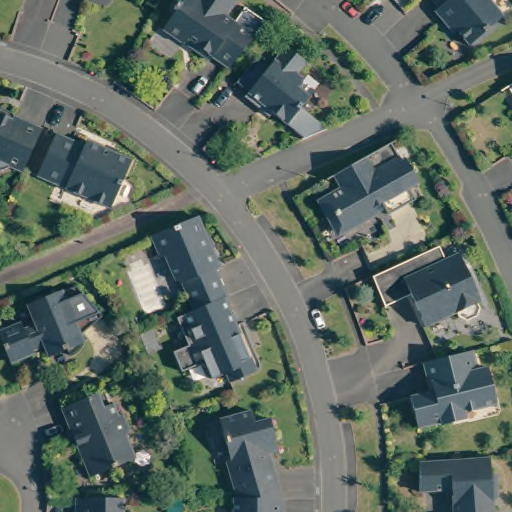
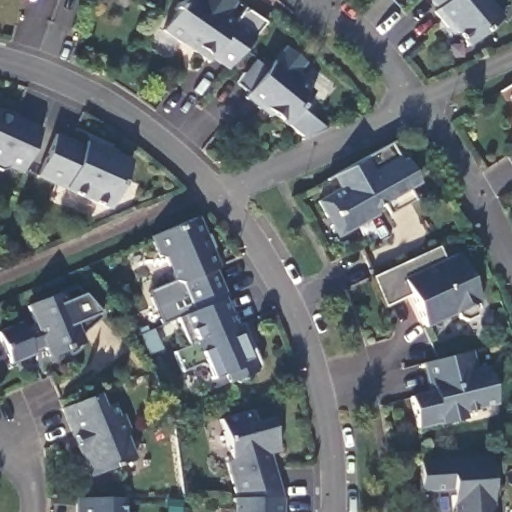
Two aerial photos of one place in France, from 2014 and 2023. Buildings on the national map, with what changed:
unchanged [(205,60),(193,52),(193,46),(186,42),(180,45),(161,31),(170,19),(174,12),(172,10),(176,4),(179,5),(183,0),(229,0),(234,3),(223,17),(232,24),(243,9),(264,24),(253,38),(247,45),(227,70),(210,59),(205,60)]
unchanged [(466,42),(449,22),(446,25),(432,9),(436,5),(431,0),(488,0),(500,14),(466,42)]
unchanged [(303,64),(294,75),(300,81),(298,84),(310,95),(298,110),(325,132),(299,142),(298,140),(300,140),(270,115),(267,119),(242,99),(245,95),(233,85),(252,61),(264,71),(283,48),(303,64)]
unchanged [(10,164),(9,166),(2,168),(0,167),(0,107),(2,106),(13,111),(15,115),(14,116),(41,127),(42,125),(44,125),(39,137),(24,170),(10,164)]
unchanged [(42,172),(61,131),(85,142),(90,144),(92,139),(136,159),(114,206),(42,172)]
unchanged [(392,142),(388,145),(398,162),(402,160),(415,184),(405,189),(412,201),(386,215),(382,210),(341,233),(330,215),(324,219),(315,202),(338,189),(331,176),(323,181),(323,180),(391,141),(392,142)]
unchanged [(180,281),(173,277),(164,255),(157,253),(148,232),(160,227),(191,215),(194,213),(203,233),(201,234),(206,245),(208,245),(217,263),(214,265),(226,292),(222,295),(191,307),(180,281)]
unchanged [(436,247),(442,261),(455,255),(477,302),(474,304),(476,310),(473,317),(463,322),(455,319),(453,313),(422,327),(407,295),(381,307),(369,277),(436,247)]
unchanged [(0,333),(0,327),(22,318),(25,325),(37,321),(29,302),(77,281),(102,312),(82,330),(86,335),(84,341),(81,345),(77,349),(72,351),(67,345),(50,351),(44,338),(33,343),(36,348),(12,358),(0,333)]
unchanged [(233,321),(240,319),(257,357),(257,358),(258,360),(258,361),(258,362),(258,364),(257,365),(256,366),(255,367),(253,368),(244,371),(244,373),(244,374),(244,375),(243,376),(242,376),(242,377),(241,378),(240,378),(239,378),(238,378),(237,378),(235,378),(234,378),(233,377),(232,376),(228,378),(224,369),(210,375),(205,363),(198,360),(180,368),(171,348),(187,342),(175,315),(178,313),(191,307),(222,295),(233,321)]
unchanged [(464,348),(470,347),(475,365),(485,363),(492,391),(476,395),(478,403),(461,407),(463,415),(439,420),(439,418),(415,424),(408,392),(431,386),(429,378),(426,378),(421,358),(464,348)]
unchanged [(100,388),(105,401),(108,400),(113,413),(118,412),(125,427),(123,434),(131,455),(87,474),(74,443),(78,441),(74,431),(70,433),(58,406),(86,394),(100,388)]
unchanged [(225,461),(229,460),(218,418),(250,409),(253,421),(268,417),(277,448),(252,455),(256,470),(272,466),(281,496),(278,496),(235,496),(225,461)]
unchanged [(488,452),(489,470),(494,470),(495,493),(492,497),(492,512),(451,512),(449,485),(420,487),(418,457),(488,452)]
unchanged [(235,496),(278,496),(281,496),(281,512),(232,512),(232,496),(235,496)]
unchanged [(125,500),(124,512),(77,512),(78,500),(125,500)]

